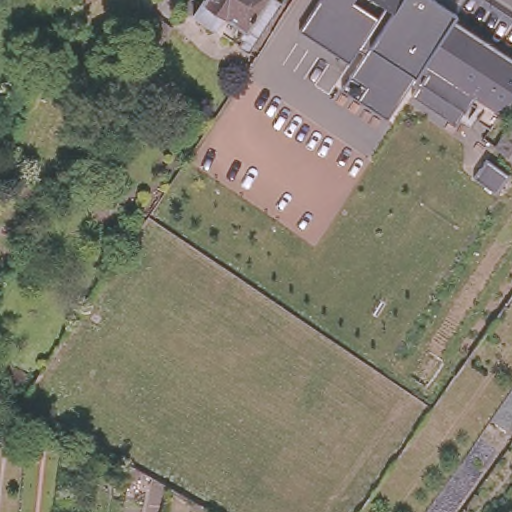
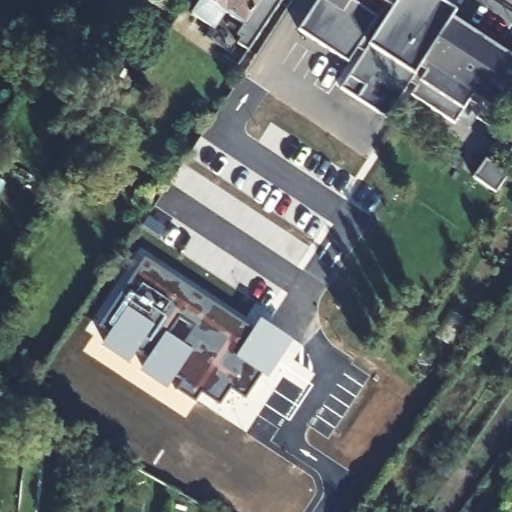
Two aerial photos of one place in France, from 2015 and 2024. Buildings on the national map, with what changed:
unchanged [(192,0),(271,0),(240,50),(229,42),(232,36),(228,34),(235,24),(216,11),(205,27),(183,13),(192,0)]
unchanged [(477,87),(457,116),(414,88),(419,80),(413,76),(390,111),(344,80),(367,45),(361,41),(352,55),(302,22),(317,0),(445,0),(457,8),(454,13),(512,54),(512,93),(504,106),(477,87)]
unchanged [(157,17),(173,27),(145,70),(128,60),(157,17)]
new [(202,393),(195,402),(176,390),(182,382),(98,327),(145,259),(279,347),(245,400),(229,390),(219,405),(202,393)]

